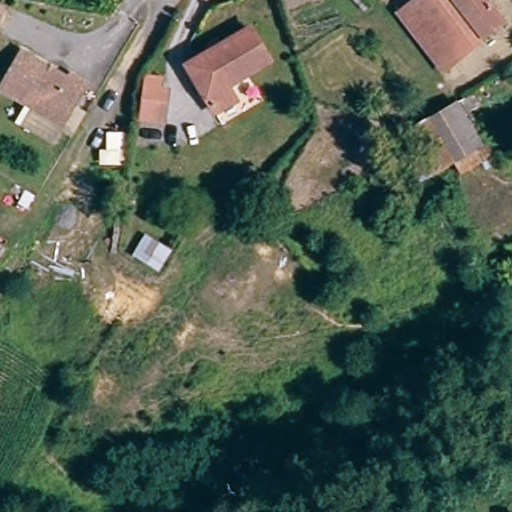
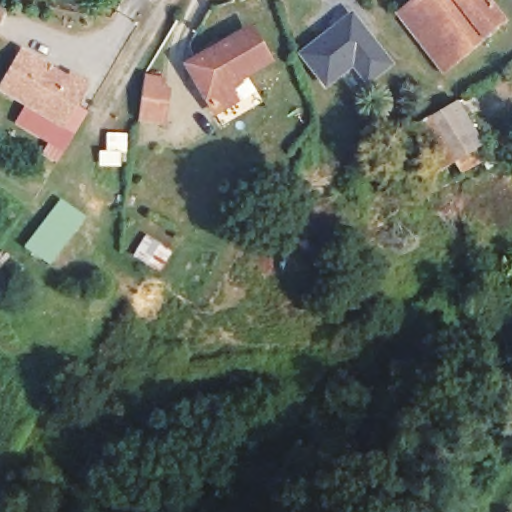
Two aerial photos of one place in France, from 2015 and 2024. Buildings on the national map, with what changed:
unchanged [(510,32),(447,80),(404,24),(404,23),(392,8),(403,0),(485,0),(510,32)]
new [(367,84),(353,67),(326,89),(300,56),(354,11),(394,63),(367,84)]
unchanged [(258,35),(274,68),(231,89),(238,104),(217,115),(195,66),(258,35)]
unchanged [(20,115),(32,98),(7,81),(32,46),(75,77),(78,73),(92,82),(65,121),(53,138),(20,115)]
unchanged [(165,78),(163,84),(167,85),(172,86),(165,120),(147,117),(142,115),(144,105),(151,75),(165,78)]
unchanged [(485,148),(480,153),(432,179),(410,135),(460,102),(485,148)]
new [(60,200),(85,219),(47,267),(22,248),(60,200)]
unchanged [(137,239),(164,252),(151,276),(125,262),(137,239)]

